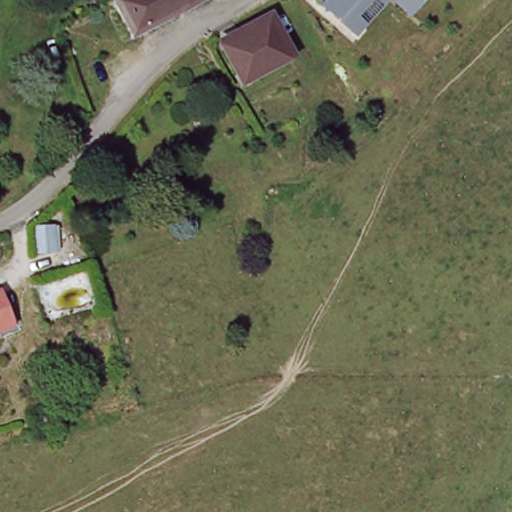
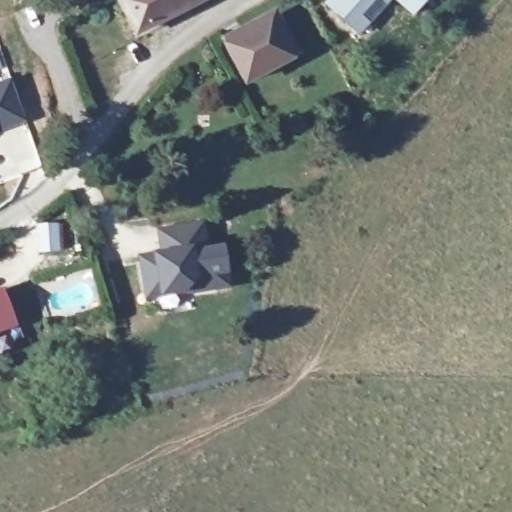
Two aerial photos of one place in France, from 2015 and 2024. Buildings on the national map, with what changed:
unchanged [(119,0),(212,0),(135,35),(119,0)]
unchanged [(325,3),(327,0),(391,0),(357,36),(325,3)]
unchanged [(396,0),(429,0),(414,17),(396,0)]
unchanged [(272,23),(288,60),(239,78),(225,39),(272,23)]
new [(8,75),(26,123),(0,133),(0,79),(8,75)]
new [(206,290),(187,294),(184,292),(153,298),(150,284),(145,284),(140,259),(161,255),(157,232),(166,230),(200,224),(205,250),(221,247),(225,271),(229,286),(206,290)]
unchanged [(59,272),(42,280),(37,271),(28,256),(36,250),(43,245),(59,272)]
unchanged [(5,315),(0,316),(0,290),(5,315)]
unchanged [(8,334),(0,335),(0,316),(5,315),(8,334)]

